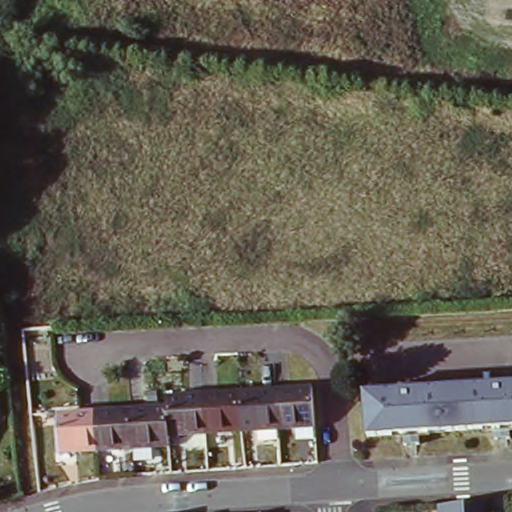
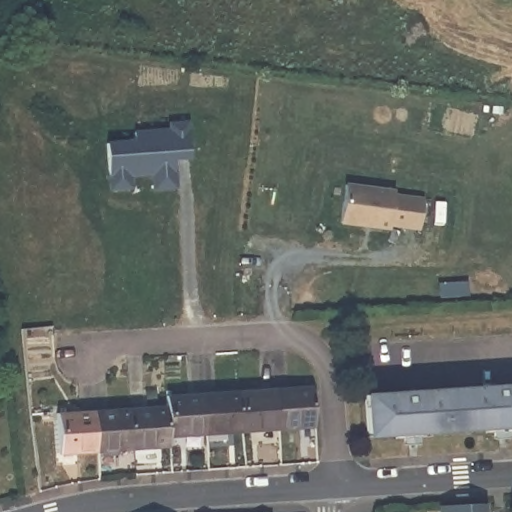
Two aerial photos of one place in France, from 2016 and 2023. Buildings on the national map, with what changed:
new [(183,127),(185,162),(169,162),(171,192),(148,194),(147,179),(125,181),(126,193),(104,194),(101,149),(130,147),(130,138),(165,135),(165,129),(183,127)]
new [(389,194),(389,198),(419,202),(415,232),(386,228),(386,232),(336,226),(341,189),(389,194)]
unchanged [(512,426),(509,426),(510,437),(494,437),(493,427),(417,433),(418,443),(403,445),(402,435),(366,437),(364,395),(512,383),(512,426)]
unchanged [(311,390),(312,427),(275,431),(274,392),(311,390)]
unchanged [(274,392),(275,431),(239,433),(237,396),(274,392)]
unchanged [(237,396),(239,433),(202,437),(201,399),(237,396)]
unchanged [(164,402),(201,399),(202,437),(165,440),(164,412),(164,402)]
unchanged [(164,412),(165,440),(165,450),(128,452),(127,414),(164,412)]
unchanged [(127,414),(128,452),(92,456),(91,417),(127,414)]
unchanged [(91,417),(92,456),(55,458),(54,420),(91,417)]
unchanged [(490,503),(491,512),(443,512),(442,505),(490,503)]

